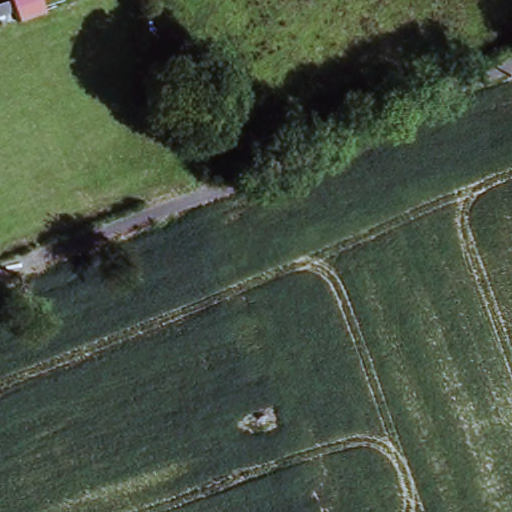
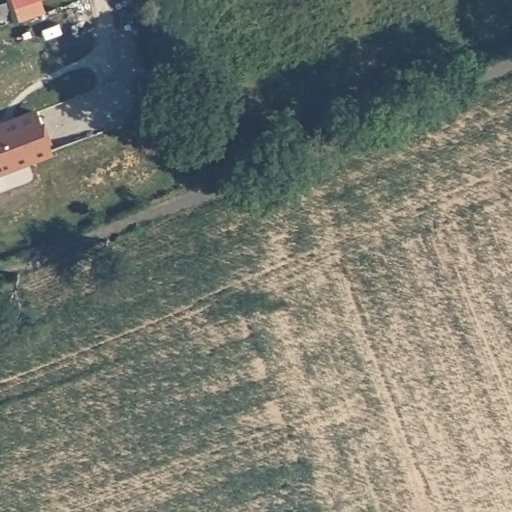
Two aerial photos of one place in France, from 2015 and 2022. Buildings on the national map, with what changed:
unchanged [(24,20),(18,0),(55,0),(44,13),(24,20)]
new [(37,111),(52,152),(0,172),(0,125),(37,111)]

